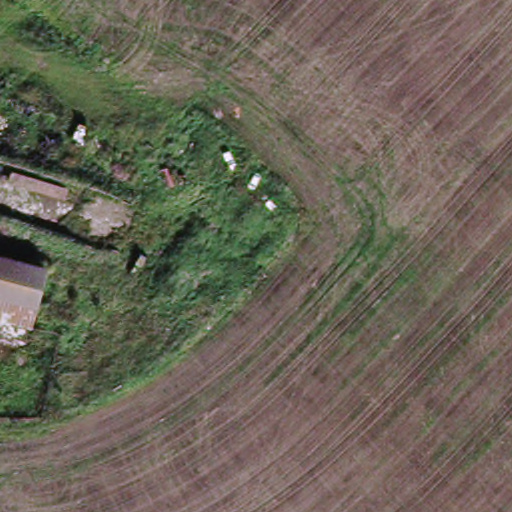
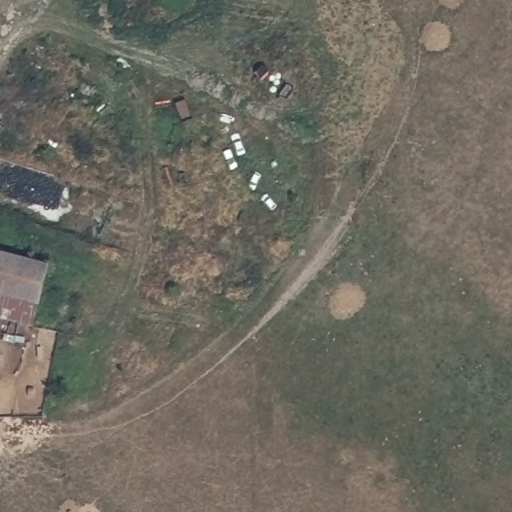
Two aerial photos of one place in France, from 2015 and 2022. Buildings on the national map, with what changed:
unchanged [(40,326),(0,320),(0,257),(49,263),(40,326)]

